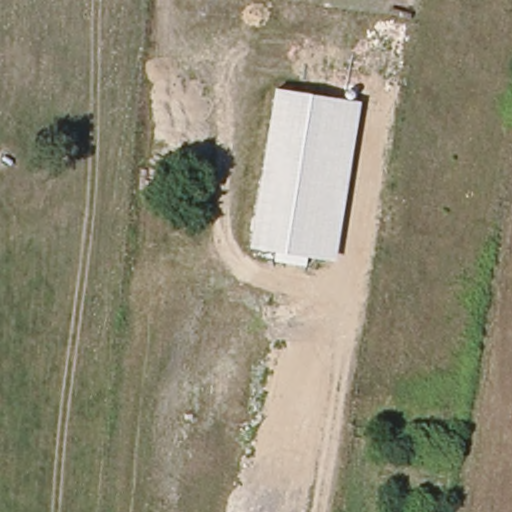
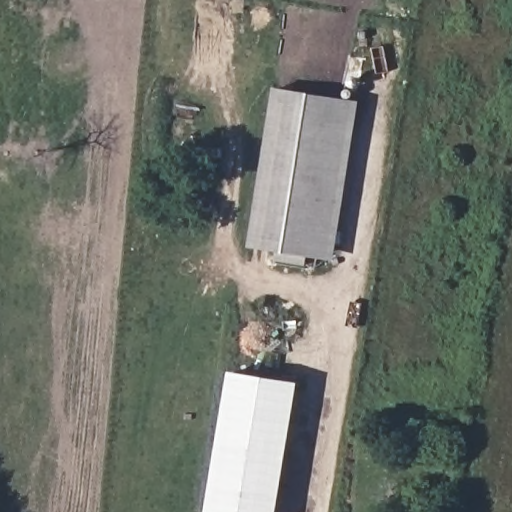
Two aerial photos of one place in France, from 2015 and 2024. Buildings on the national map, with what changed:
unchanged [(334,260),(249,247),(274,89),(359,101),(334,260)]
new [(230,372),(299,383),(278,512),(207,512),(230,372)]

